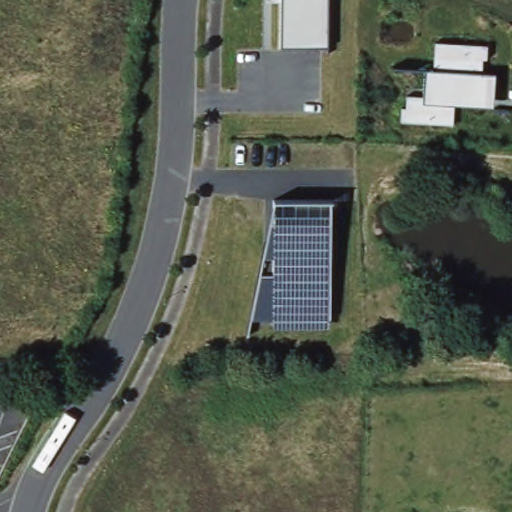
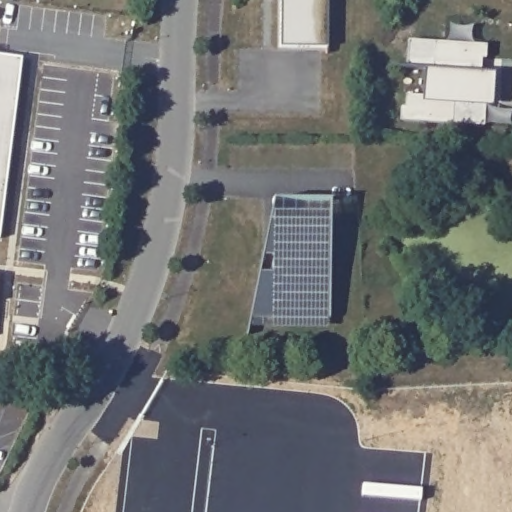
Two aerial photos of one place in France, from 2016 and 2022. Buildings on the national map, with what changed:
unchanged [(279,47),(279,0),(328,0),(327,47),(279,47)]
unchanged [(493,105),(453,104),(452,124),(399,120),(400,106),(406,106),(406,93),(424,94),(425,69),(434,69),(435,42),(488,45),(488,59),(482,59),(481,73),(495,74),(493,105)]
new [(0,56),(21,59),(0,238),(0,56)]
unchanged [(329,199),(329,317),(275,318),(273,333),(246,335),(274,197),(329,199)]

